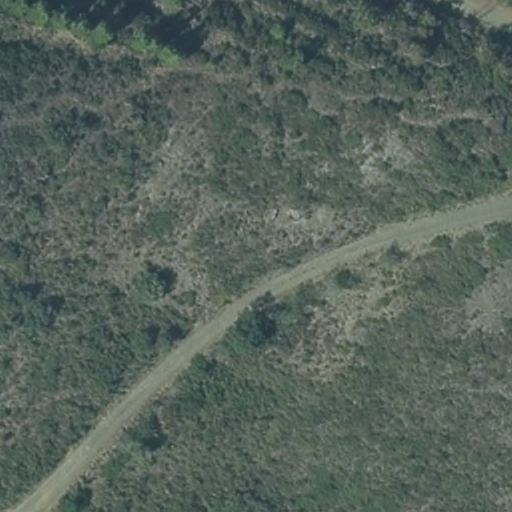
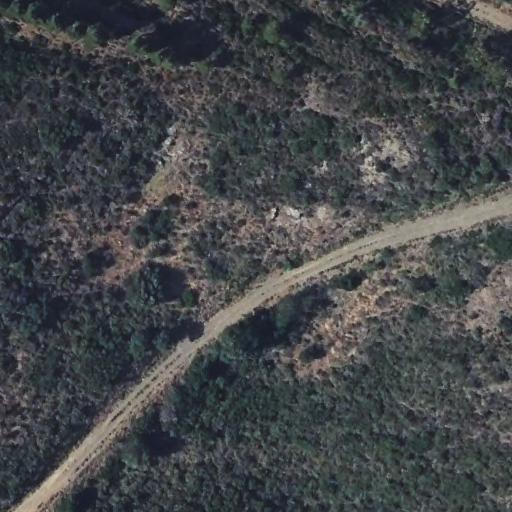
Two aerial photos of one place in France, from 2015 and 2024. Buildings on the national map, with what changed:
[]

